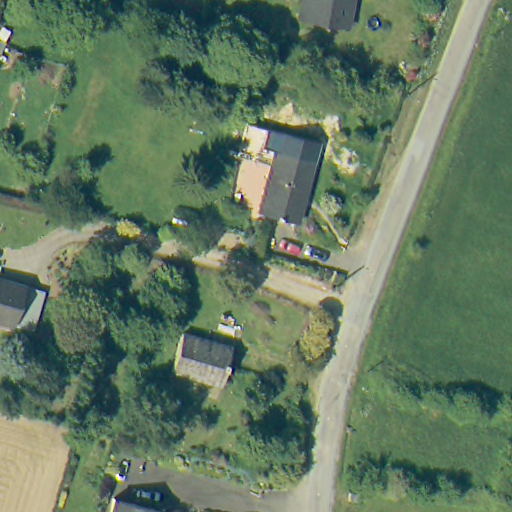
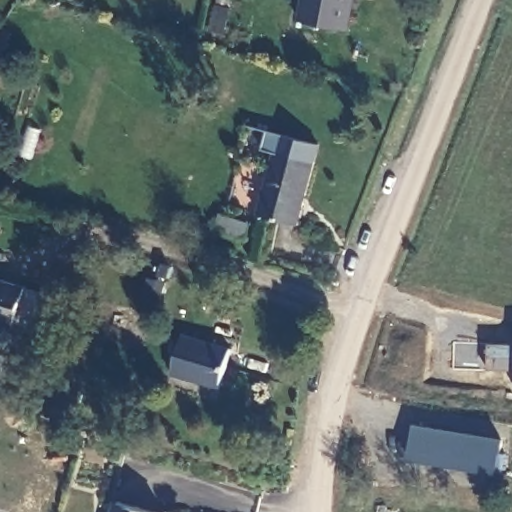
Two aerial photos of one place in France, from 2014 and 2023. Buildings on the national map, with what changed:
unchanged [(301,0),(353,0),(347,29),(297,21),(301,0)]
unchanged [(274,150),(314,161),(296,224),(257,213),(274,150)]
unchanged [(0,323),(0,279),(44,293),(33,332),(0,323)]
unchanged [(222,385),(173,371),(183,336),(232,349),(222,385)]
new [(411,424),(499,437),(493,471),(406,458),(411,424)]
unchanged [(110,512),(114,500),(157,512),(110,512)]

